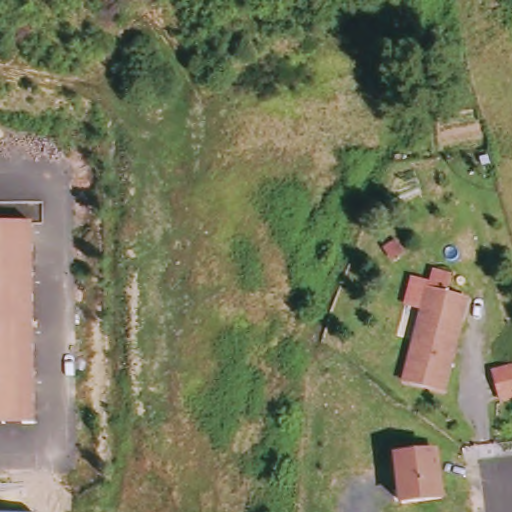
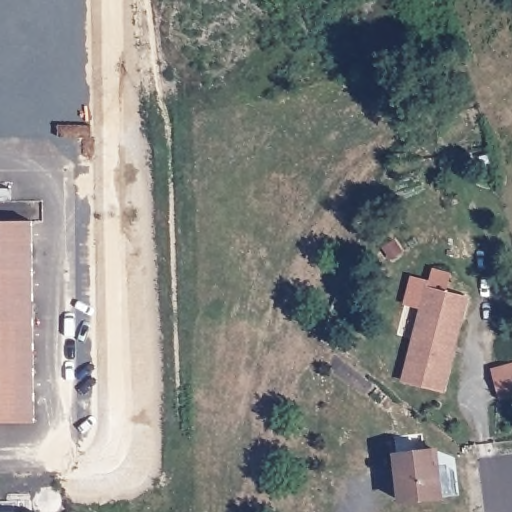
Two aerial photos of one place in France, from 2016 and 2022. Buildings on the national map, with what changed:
unchanged [(36,225),(37,422),(0,422),(0,225),(36,225)]
unchanged [(466,321),(460,320),(455,340),(450,338),(448,345),(456,348),(445,389),(405,378),(427,303),(410,297),(413,281),(431,287),(431,286),(435,287),(438,269),(455,271),(450,291),(472,296),(466,321)]
unchanged [(487,373),(512,367),(512,397),(495,401),(487,373)]
unchanged [(395,505),(390,457),(425,455),(430,454),(432,470),(435,500),(395,505)]

